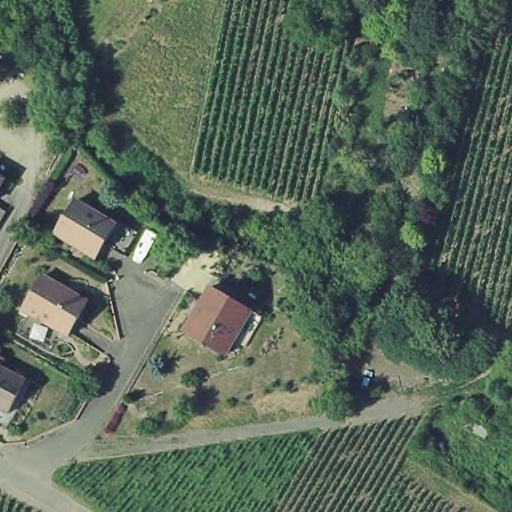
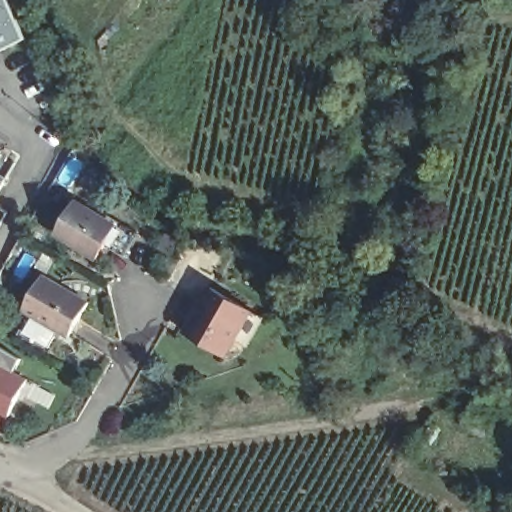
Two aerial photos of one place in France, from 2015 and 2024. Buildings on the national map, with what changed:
new [(0,50),(0,0),(5,0),(25,39),(0,50)]
unchanged [(0,195),(0,177),(8,182),(0,195)]
unchanged [(95,241),(87,255),(47,231),(65,199),(88,212),(90,207),(127,229),(125,233),(114,252),(95,241)]
unchanged [(63,338),(19,312),(39,279),(82,304),(63,338)]
unchanged [(238,350),(227,344),(218,358),(179,333),(206,289),(245,314),(256,321),(238,350)]
unchanged [(0,431),(0,372),(20,383),(3,417),(8,419),(1,432),(0,431)]

